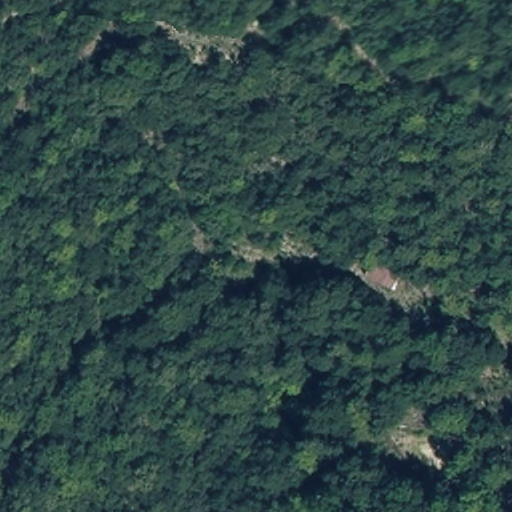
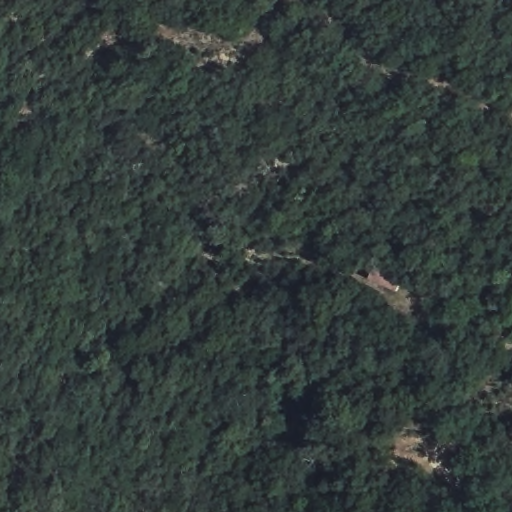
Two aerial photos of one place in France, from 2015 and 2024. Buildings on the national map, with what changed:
unchanged [(412,276),(400,299),(373,286),(383,263),(412,276)]

